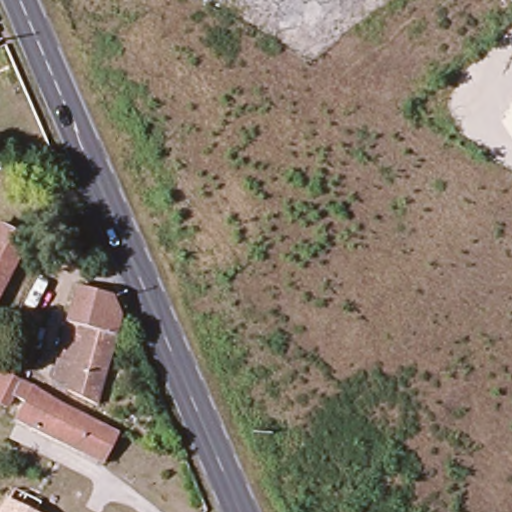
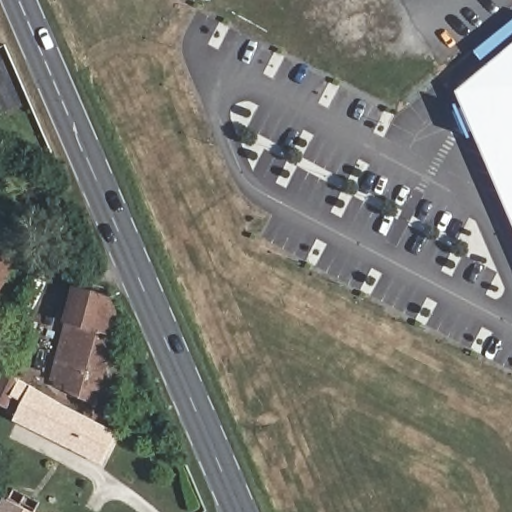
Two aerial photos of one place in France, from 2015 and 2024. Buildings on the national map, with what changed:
new [(457,90),(512,45),(512,217),(457,90)]
demolished [(469,91),(512,47),(512,129),(469,91)]
unchanged [(0,254),(0,225),(12,233),(0,254)]
unchanged [(38,249),(0,311),(0,254),(12,233),(38,249)]
unchanged [(48,381),(54,364),(43,358),(48,341),(39,335),(45,314),(65,321),(75,293),(107,302),(116,318),(92,410),(63,401),(46,388),(48,381)]
unchanged [(3,397),(0,402),(0,373),(111,436),(94,465),(11,420),(18,405),(3,397)]
unchanged [(0,506),(4,498),(33,512),(0,512),(0,506)]

